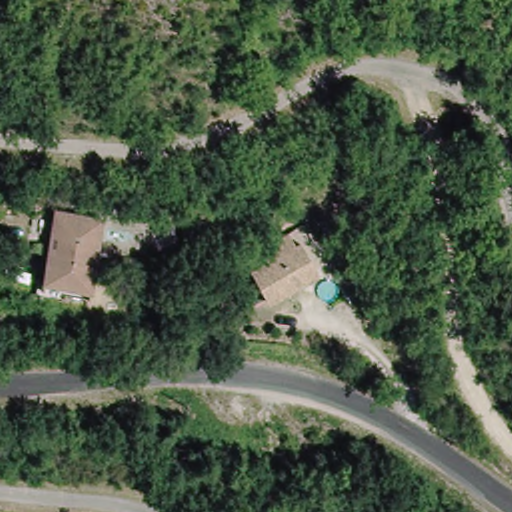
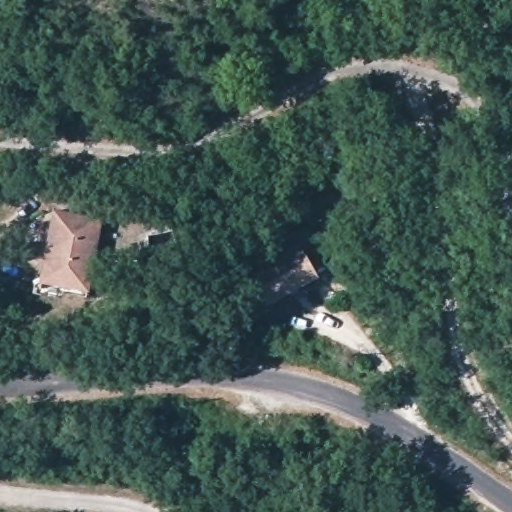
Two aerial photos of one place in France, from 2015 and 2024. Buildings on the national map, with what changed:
unchanged [(104,219),(89,295),(40,284),(56,209),(104,219)]
unchanged [(323,221),(340,260),(316,275),(300,246),(294,249),(287,237),(323,221)]
unchanged [(294,249),(300,246),(316,275),(266,306),(248,276),(260,268),(257,262),(269,255),(266,249),(287,237),(294,249)]

